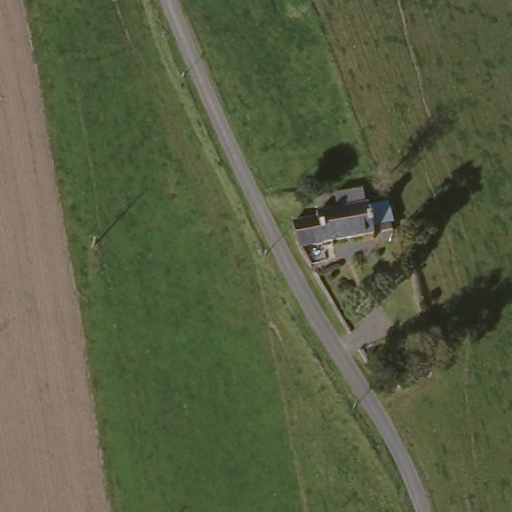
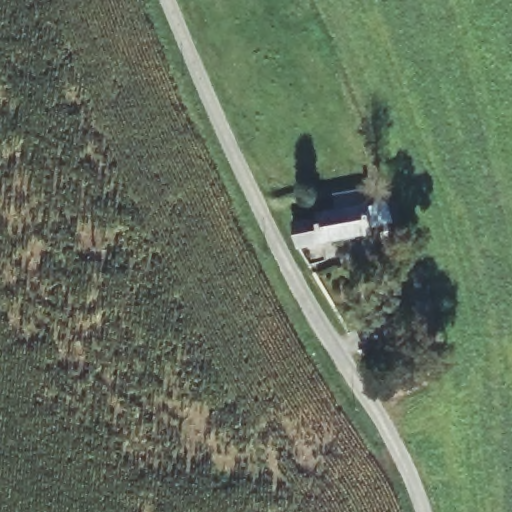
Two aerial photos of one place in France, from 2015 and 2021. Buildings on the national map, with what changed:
unchanged [(386,202),(395,232),(303,247),(297,219),(310,217),(386,202)]

